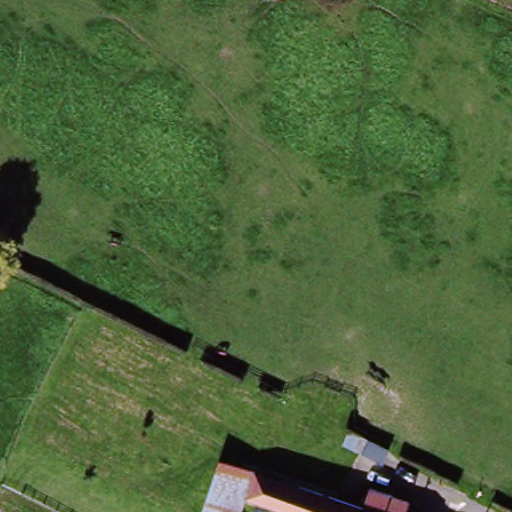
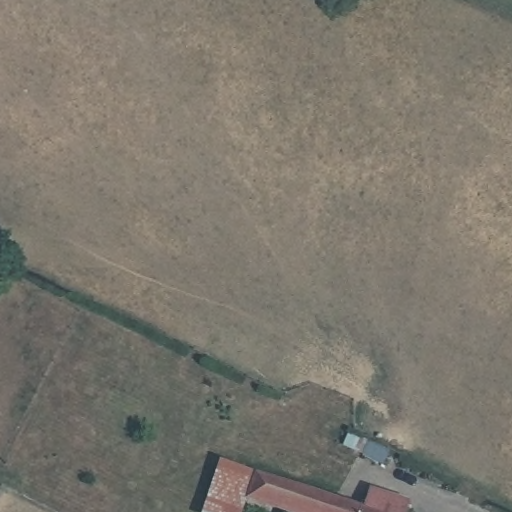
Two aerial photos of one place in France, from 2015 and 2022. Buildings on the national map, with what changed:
unchanged [(245,512),(198,512),(213,461),(359,512),(252,512),(245,510),(245,512)]
unchanged [(401,506),(399,512),(362,512),(370,491),(401,506)]

